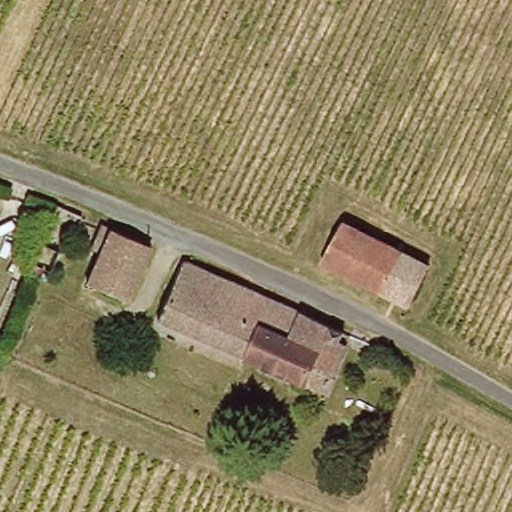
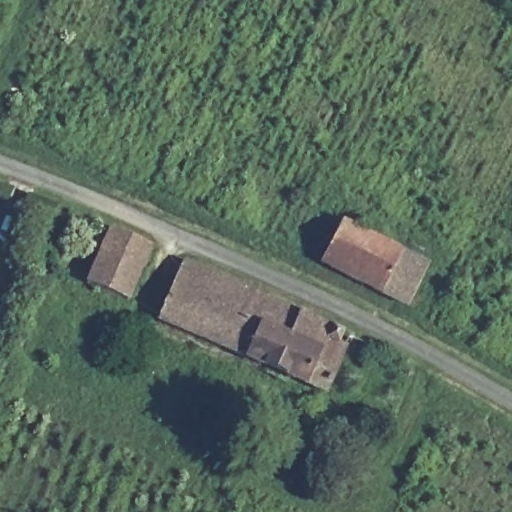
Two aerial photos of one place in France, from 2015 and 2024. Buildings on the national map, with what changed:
unchanged [(82,217),(79,225),(53,214),(57,206),(82,217)]
unchanged [(428,266),(408,307),(320,262),(341,222),(428,266)]
unchanged [(86,284),(100,252),(90,248),(100,225),(110,229),(150,247),(126,302),(86,284)]
unchanged [(59,252),(50,272),(32,264),(40,245),(41,244),(59,252)]
unchanged [(338,328),(333,338),(340,342),(320,387),(152,315),(178,256),(296,308),(338,328)]

